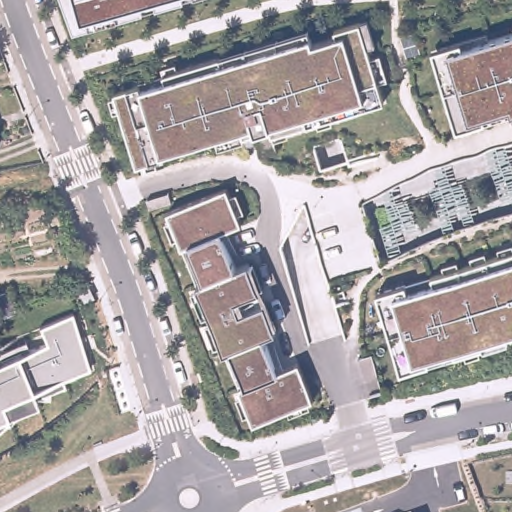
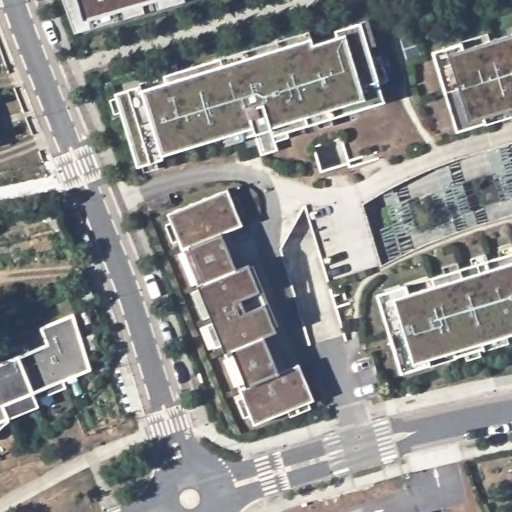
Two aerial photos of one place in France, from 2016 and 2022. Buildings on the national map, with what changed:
unchanged [(64,0),(184,0),(75,32),(64,0)]
unchanged [(136,162),(114,92),(363,23),(385,102),(268,130),(275,150),(262,154),(255,133),(136,162)]
unchanged [(512,26),(512,110),(454,130),(430,50),(512,26)]
unchanged [(314,127),(328,171),(295,181),(281,139),(314,127)]
unchanged [(0,148),(0,135),(3,147),(0,148)]
unchanged [(240,223),(220,231),(235,270),(248,265),(274,331),(264,336),(279,372),(300,365),(314,400),(254,425),(225,353),(197,287),(165,213),(225,187),(240,223)]
unchanged [(379,294),(512,254),(512,335),(402,370),(379,294)]
unchanged [(28,345),(44,339),(39,328),(71,315),(90,369),(69,377),(61,380),(32,392),(37,405),(8,417),(0,426),(0,345),(24,335),(28,345)]

